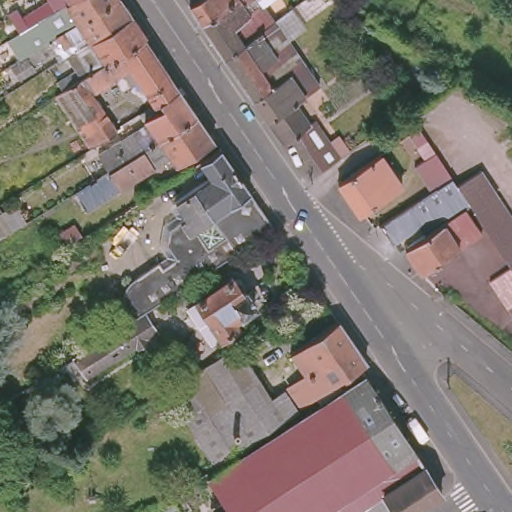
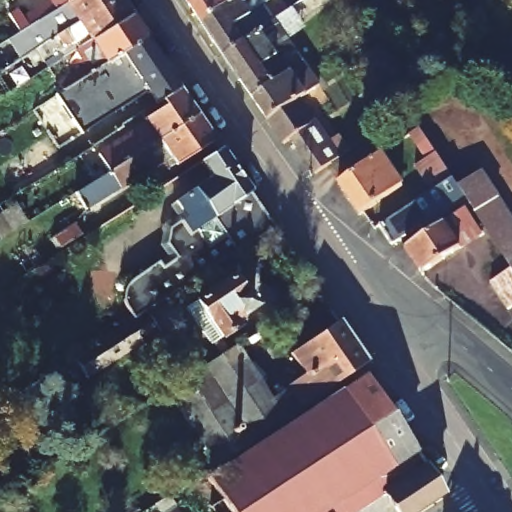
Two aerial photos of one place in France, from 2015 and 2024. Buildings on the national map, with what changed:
unchanged [(77,39),(47,58),(45,55),(14,74),(8,64),(54,36),(111,0),(127,0),(135,12),(82,46),(77,39)]
unchanged [(44,0),(67,0),(47,12),(23,27),(17,17),(44,0)]
unchanged [(54,36),(49,27),(55,23),(47,12),(67,0),(111,0),(54,36)]
unchanged [(190,1),(189,0),(234,0),(203,21),(195,9),(190,1)]
unchanged [(203,21),(234,0),(267,0),(264,2),(274,17),(225,52),(203,21)]
unchanged [(225,52),(274,17),(292,5),(304,24),(288,34),(305,59),(253,95),(225,52)]
unchanged [(61,79),(87,61),(79,47),(82,46),(135,12),(149,32),(78,80),(67,87),(61,79)]
unchanged [(107,136),(95,143),(60,91),(67,87),(78,80),(149,32),(184,84),(158,100),(144,77),(135,82),(127,71),(95,90),(120,127),(107,136)]
unchanged [(322,82),(297,99),(313,122),(292,137),(285,141),(253,95),(305,59),(322,82)]
unchanged [(158,100),(184,84),(202,111),(158,140),(113,169),(101,151),(152,119),(145,109),(158,100)]
unchanged [(95,180),(113,169),(158,140),(202,111),(219,136),(182,161),(181,160),(174,164),(170,157),(89,207),(78,190),(95,180)]
unchanged [(313,122),(317,120),(331,140),(340,153),(316,171),(306,156),(292,137),(313,122)]
unchanged [(410,168),(421,160),(405,135),(415,129),(422,139),(448,179),(446,180),(442,182),(426,193),(410,168)]
unchanged [(223,260),(168,296),(165,297),(159,301),(148,308),(137,316),(132,304),(128,296),(129,287),(136,277),(163,258),(167,264),(181,254),(171,240),(174,225),(190,214),(180,197),(215,174),(203,157),(224,144),(242,170),(254,187),(265,205),(279,225),(223,260)]
unchanged [(360,216),(338,185),(376,159),(381,155),(403,187),(360,216)]
unchanged [(506,267),(501,261),(499,257),(494,249),(492,246),(485,236),(477,224),(469,211),(466,207),(463,202),(460,197),(458,194),(452,185),(475,170),(483,182),(492,196),(501,209),(509,221),(512,226),(512,303),(502,310),(484,282),(506,267)]
unchanged [(414,230),(388,247),(374,227),(388,217),(395,213),(415,200),(421,197),(426,193),(442,182),(446,180),(448,179),(452,185),(458,194),(460,197),(463,202),(466,207),(463,209),(461,210),(445,221),(419,237),(414,230)]
unchanged [(12,233),(0,214),(14,205),(26,225),(12,233)]
unchanged [(417,273),(401,250),(404,248),(419,237),(445,221),(461,210),(477,235),(417,273)]
unchanged [(73,225),(80,237),(60,249),(53,238),(73,225)]
unchanged [(236,273),(239,277),(245,277),(248,283),(246,289),(248,291),(250,290),(259,302),(237,318),(240,323),(216,341),(192,303),(236,273)]
unchanged [(162,330),(152,336),(153,337),(142,345),(141,343),(90,376),(86,370),(79,374),(76,370),(72,364),(66,368),(62,363),(67,361),(94,343),(121,326),(128,321),(137,316),(148,308),(162,330)]
unchanged [(188,490),(191,487),(209,475),(212,479),(275,438),(271,433),(218,469),(169,393),(174,390),(159,366),(178,354),(179,357),(191,351),(204,371),(233,352),(281,426),(304,411),(291,391),(293,388),(302,383),(311,377),(295,354),(310,343),(342,322),(370,364),(363,368),(368,377),(397,423),(417,453),(428,469),(417,476),(381,499),(390,512),(185,512),(175,497),(188,490)]
unchanged [(428,469),(445,495),(418,512),(390,512),(381,499),(417,476),(428,469)]

